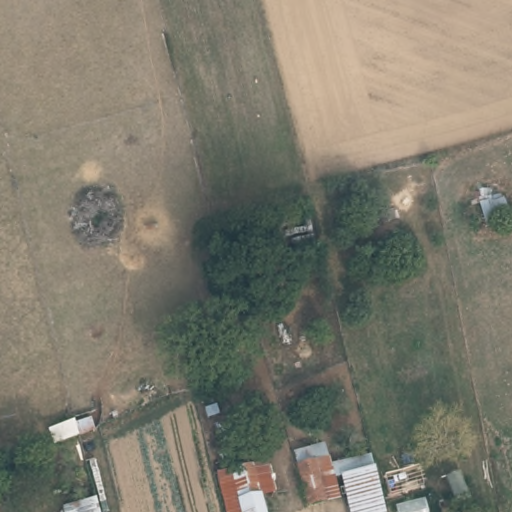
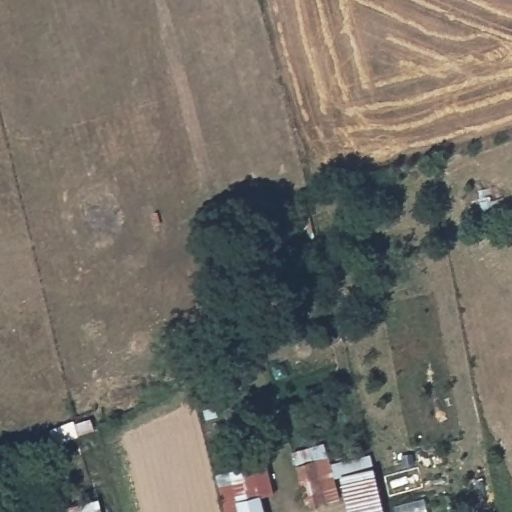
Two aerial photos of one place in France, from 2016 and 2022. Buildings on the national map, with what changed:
unchanged [(312,500),(302,458),(326,451),(336,495),(312,500)]
unchanged [(230,470),(226,457),(249,452),(252,463),(266,460),(274,488),(260,492),(266,512),(226,512),(216,473),(230,470)]
unchanged [(373,464),(387,512),(350,512),(340,472),(373,464)]
unchanged [(97,506),(99,512),(74,512),(97,506)]

